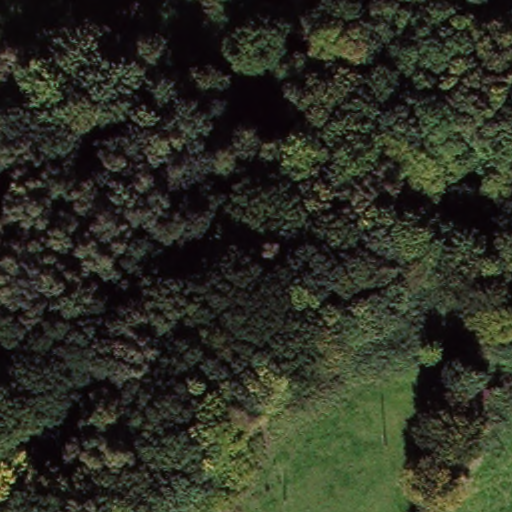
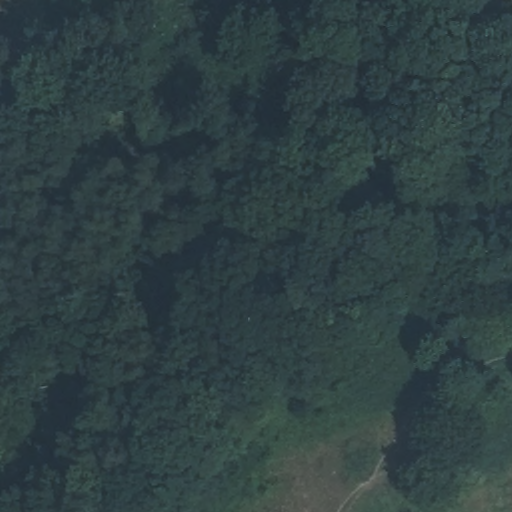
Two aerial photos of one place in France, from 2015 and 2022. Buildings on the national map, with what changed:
unchanged [(457,406),(474,411),(464,451),(445,446),(457,406)]

